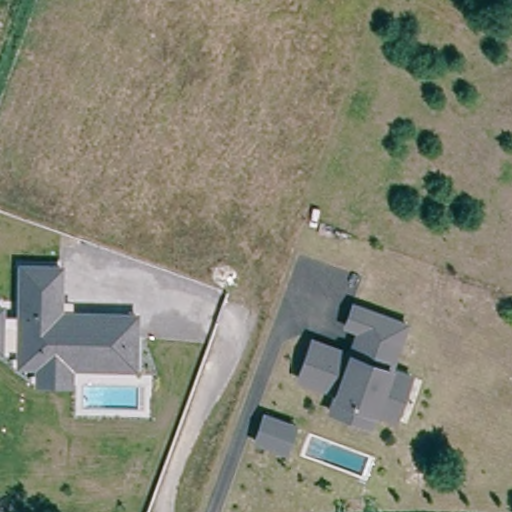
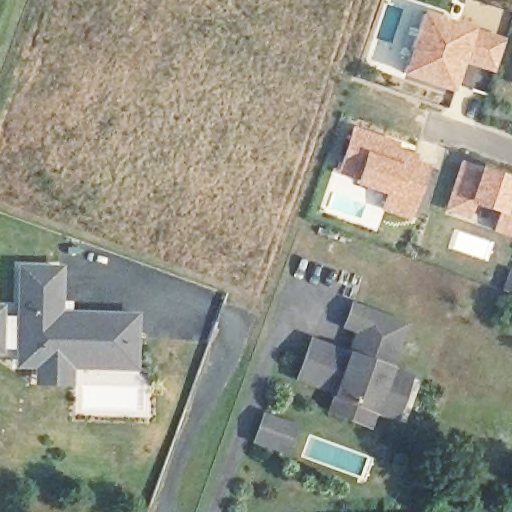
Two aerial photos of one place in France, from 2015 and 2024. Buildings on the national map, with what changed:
new [(475,28),(474,30),(505,39),(494,73),(462,66),(453,93),(402,77),(422,11),(475,28)]
new [(400,144),(399,148),(417,155),(415,162),(429,166),(411,222),(380,213),(387,197),(353,185),(355,181),(337,175),(352,128),(400,144)]
new [(497,214),(473,206),(469,219),(444,210),(462,160),(481,167),(511,178),(512,179),(512,237),(493,231),(497,214)]
unchanged [(5,303),(5,314),(16,315),(17,261),(63,263),(63,299),(74,300),(73,308),(139,311),(138,370),(73,369),(73,386),(35,385),(34,367),(16,368),(16,347),(3,347),(3,354),(0,354),(0,303),(5,303)]
unchanged [(359,330),(346,325),(354,304),(407,324),(398,345),(359,330)]
unchanged [(389,369),(350,353),(359,330),(398,345),(389,369)]
unchanged [(328,410),(333,396),(335,391),(298,376),(312,339),(350,353),(389,369),(409,377),(393,419),(373,411),(367,425),(328,410)]
unchanged [(297,423),(286,455),(252,441),(263,410),(297,423)]

